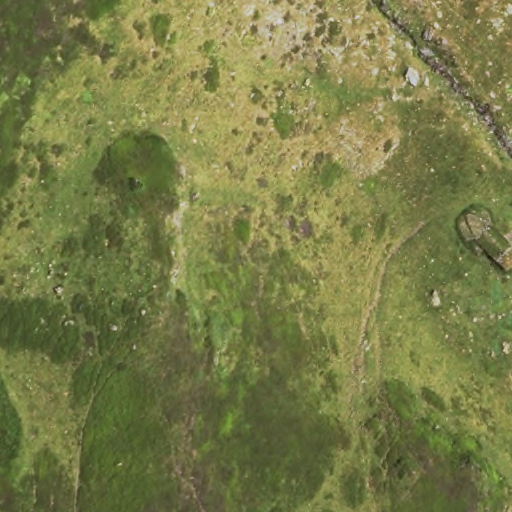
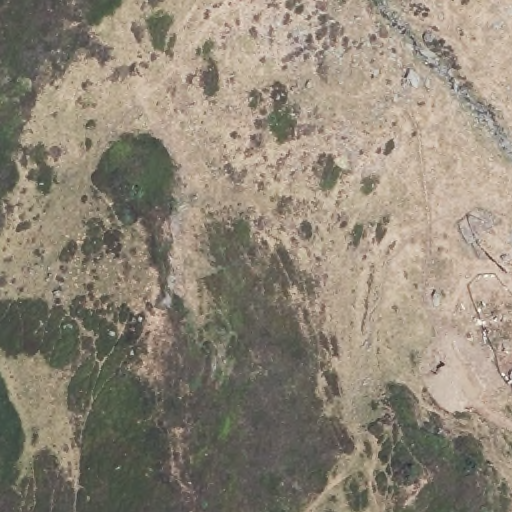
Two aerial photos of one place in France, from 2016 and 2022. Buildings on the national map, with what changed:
unchanged [(512,243),(512,275),(481,246),(498,229),(512,243)]

